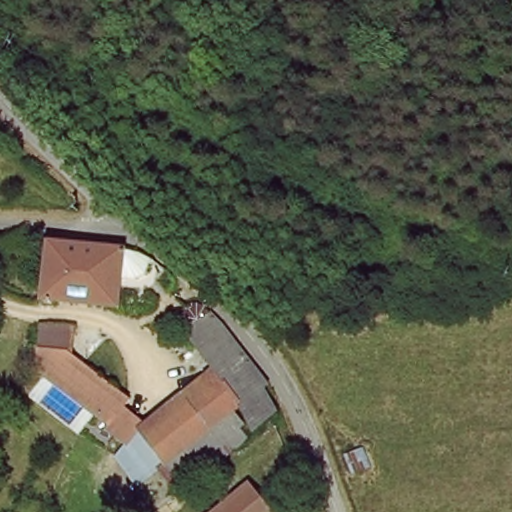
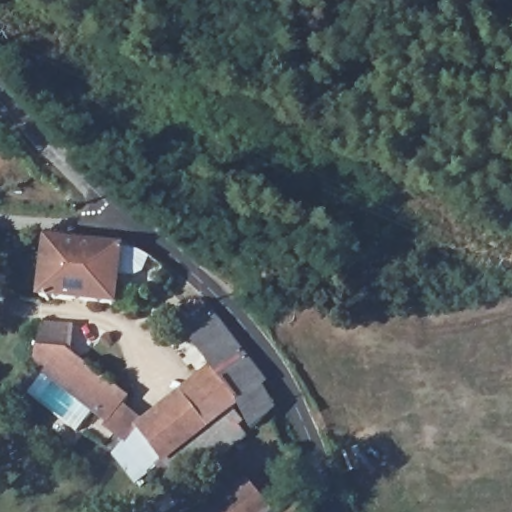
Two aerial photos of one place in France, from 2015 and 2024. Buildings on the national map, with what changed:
unchanged [(117,303),(40,298),(44,238),(83,242),(105,245),(121,246),(117,303)]
unchanged [(262,392),(280,419),(255,434),(238,407),(231,411),(241,427),(236,431),(246,443),(171,492),(154,466),(128,483),(90,432),(40,358),(44,320),(53,322),(74,323),(141,425),(212,375),(182,326),(214,308),(221,316),(242,347),(268,388),(262,392)]
unchanged [(274,512),(208,512),(253,481),(274,512)]

